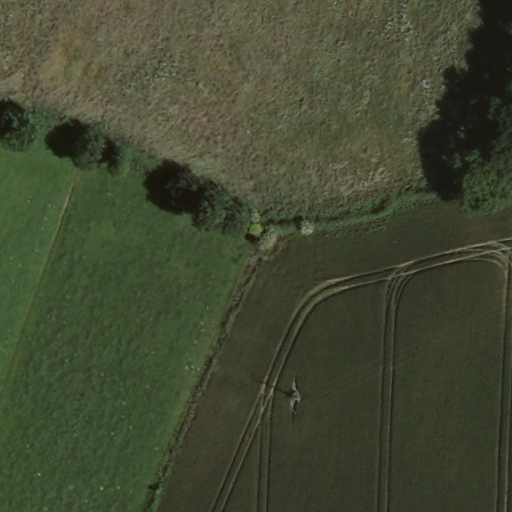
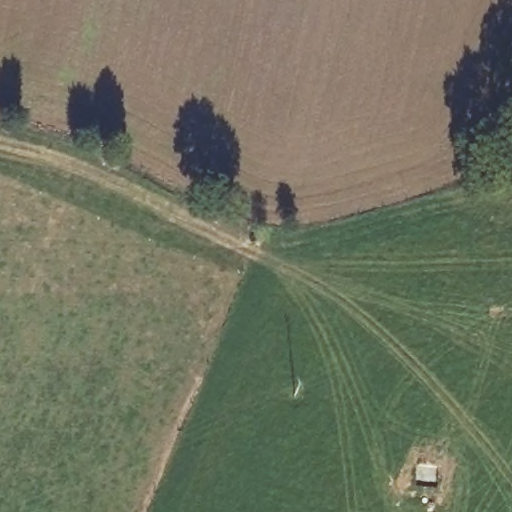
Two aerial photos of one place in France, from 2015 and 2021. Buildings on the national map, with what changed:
[]

